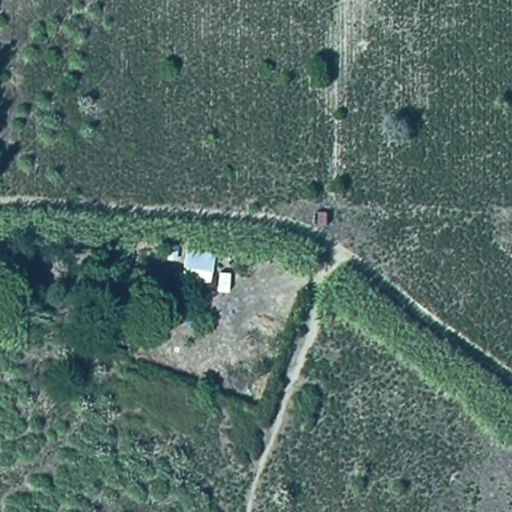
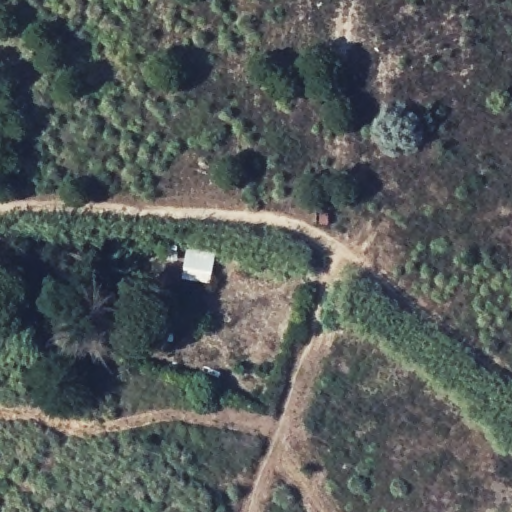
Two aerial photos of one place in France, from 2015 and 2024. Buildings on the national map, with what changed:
unchanged [(184,250),(216,257),(206,289),(176,279),(184,250)]

